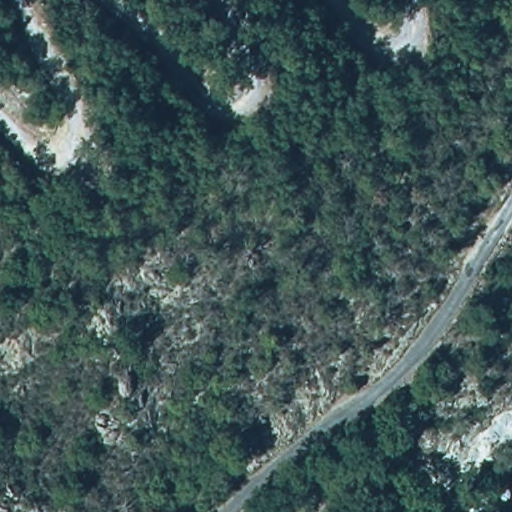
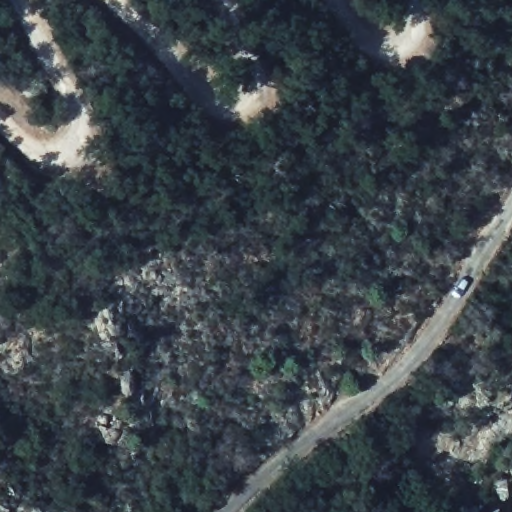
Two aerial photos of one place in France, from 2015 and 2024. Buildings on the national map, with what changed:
[]

